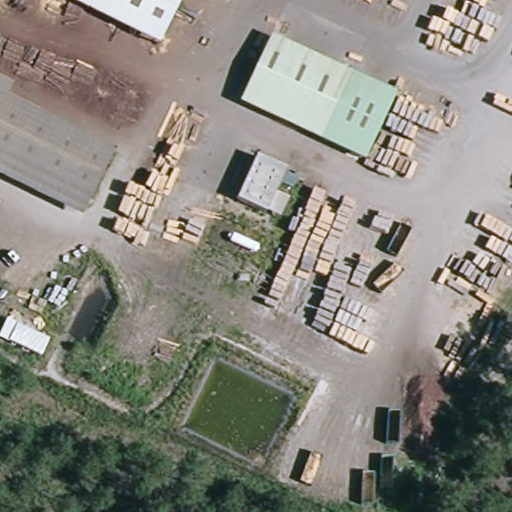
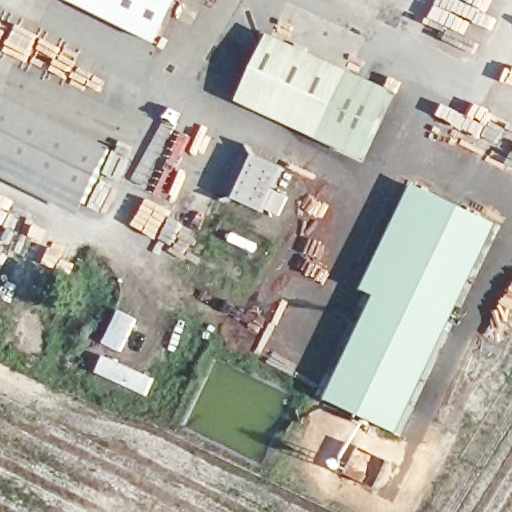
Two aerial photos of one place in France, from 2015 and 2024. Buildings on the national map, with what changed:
unchanged [(162,48),(60,0),(184,0),(162,48)]
unchanged [(273,38),(396,96),(365,161),(242,103),(273,38)]
unchanged [(5,96),(114,147),(85,211),(0,167),(0,79),(11,84),(5,96)]
unchanged [(284,220),(270,213),(268,217),(241,204),(262,160),(290,173),(279,195),(293,201),(284,220)]
new [(500,226),(400,436),(329,402),(380,298),(365,290),(415,186),(500,226)]

